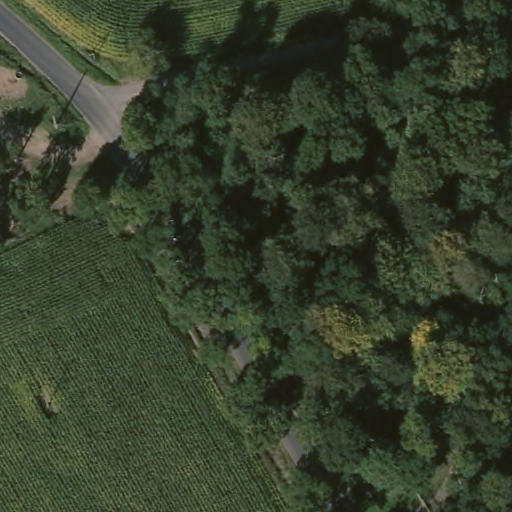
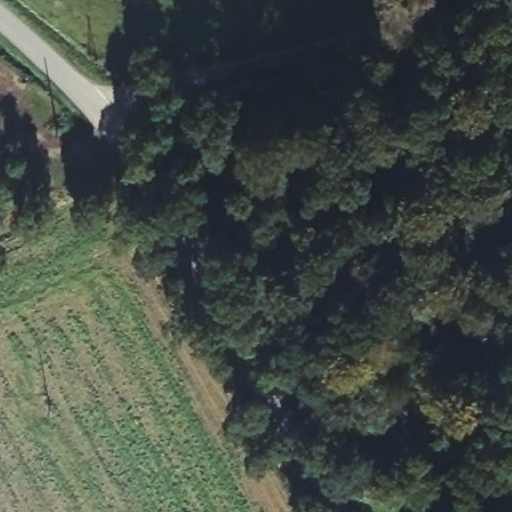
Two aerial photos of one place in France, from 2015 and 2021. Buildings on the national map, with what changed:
unchanged [(368,246),(370,245),(374,245),(380,245),(382,247),(385,250),(386,254),(386,258),(385,262),(382,265),(378,266),(375,267),(372,267),(366,267),(363,264),(361,260),(362,253),(365,249),(368,246)]

